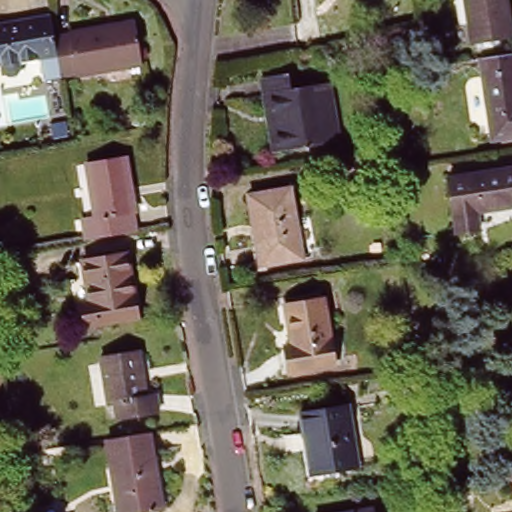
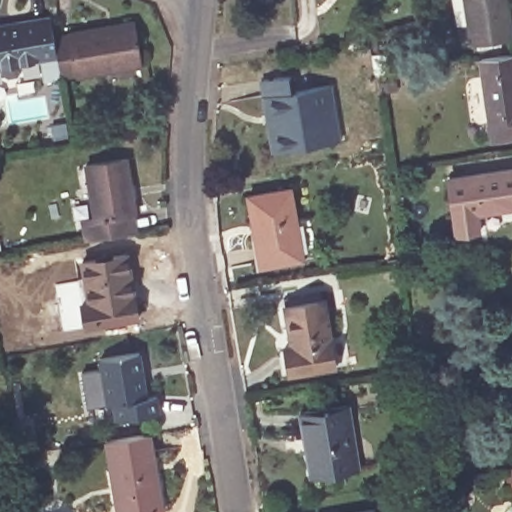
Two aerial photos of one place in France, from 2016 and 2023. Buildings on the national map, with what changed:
unchanged [(460,0),(503,0),(508,38),(466,44),(460,0)]
unchanged [(43,73),(41,61),(0,69),(0,26),(52,16),(56,38),(61,70),(43,73)]
unchanged [(56,38),(135,24),(142,66),(62,79),(61,70),(56,38)]
unchanged [(492,142),(480,61),(512,57),(512,139),(492,142)]
unchanged [(262,81),(292,77),(295,92),(330,86),(340,142),(274,153),(262,81)]
unchanged [(83,242),(79,221),(92,219),(83,166),(122,159),(132,212),(129,213),(133,233),(83,242)]
unchanged [(508,164),(512,192),(512,202),(467,208),(470,226),(447,229),(438,175),(508,164)]
unchanged [(257,245),(252,246),(244,202),(287,195),(299,265),(262,271),(257,245)]
unchanged [(84,306),(90,304),(84,264),(127,256),(138,321),(87,330),(84,306)]
unchanged [(286,347),(293,346),(287,306),(325,299),(337,366),(290,375),(286,347)]
unchanged [(110,402),(104,403),(97,355),(134,349),(143,394),(154,393),(156,410),(114,417),(110,402)]
unchanged [(311,440),(307,441),(302,413),(349,406),(360,470),(317,477),(311,440)]
unchanged [(163,512),(120,512),(108,443),(151,435),(163,512)]
unchanged [(512,468),(512,486),(510,468),(512,468)]
unchanged [(374,512),(364,512),(374,510),(374,512)]

